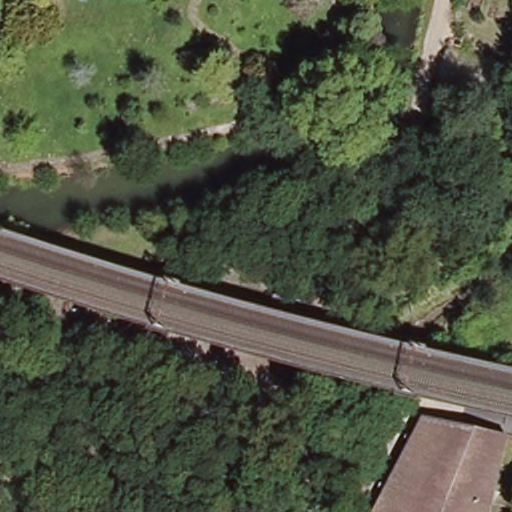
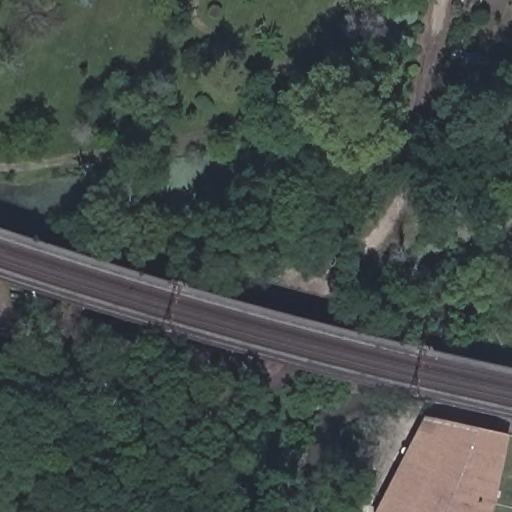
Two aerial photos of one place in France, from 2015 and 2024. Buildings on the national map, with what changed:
unchanged [(415,413),(495,428),(485,486),(480,512),(373,512),(415,413)]

